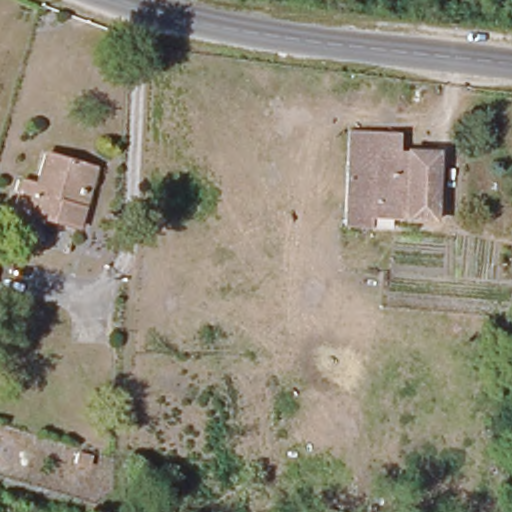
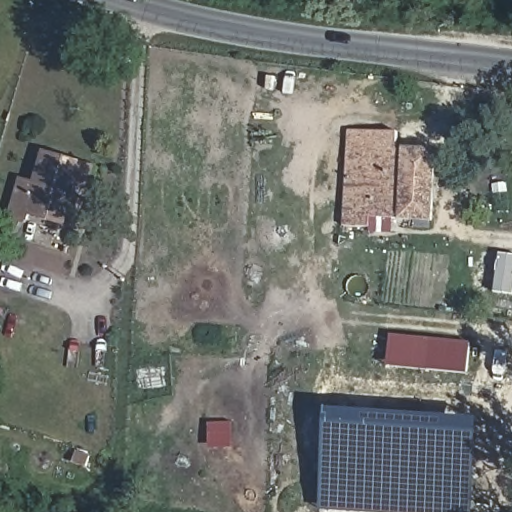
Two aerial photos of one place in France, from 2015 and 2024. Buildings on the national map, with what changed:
unchanged [(397,135),(398,152),(433,153),(428,223),(368,220),(369,233),(345,231),(349,134),(397,135)]
unchanged [(26,215),(24,223),(5,217),(16,181),(31,186),(40,155),(76,165),(87,168),(75,209),(69,229),(26,215)]
new [(391,338),(429,341),(427,370),(389,367),(391,338)]
new [(429,341),(468,344),(468,345),(466,374),(427,370),(429,341)]
new [(321,512),(328,411),(480,420),(475,512),(329,512),(321,512)]
new [(209,449),(209,423),(234,422),(234,449),(209,449)]
demolished [(110,454),(108,463),(93,458),(95,449),(110,454)]

